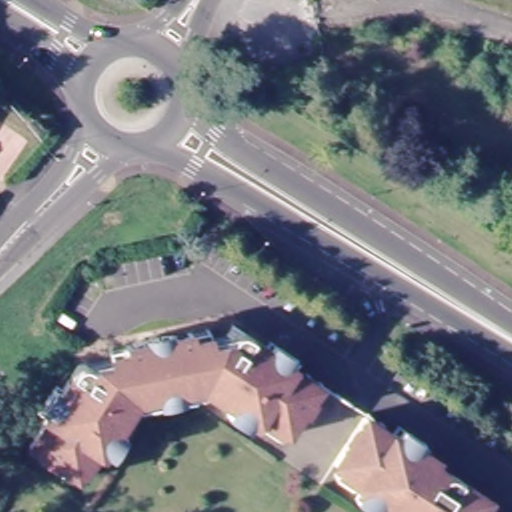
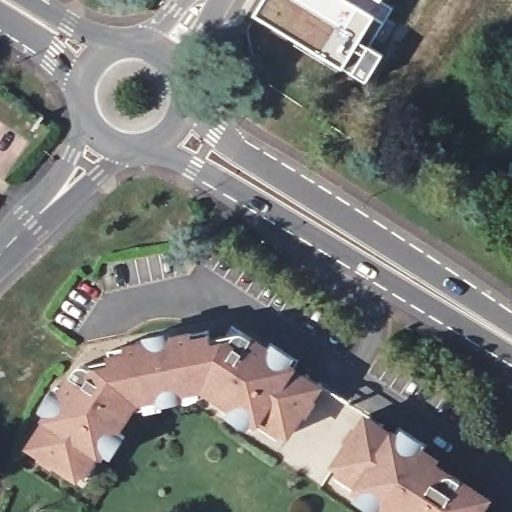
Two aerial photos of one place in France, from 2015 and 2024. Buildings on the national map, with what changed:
new [(262,0),(383,0),(393,7),(374,40),(366,34),(362,40),(384,53),(367,83),(311,52),(253,15),(262,0)]
unchanged [(104,455),(102,459),(95,454),(77,483),(28,451),(46,423),(37,417),(55,389),(61,392),(78,365),(90,373),(109,369),(108,359),(106,352),(123,349),(189,334),(206,330),(207,336),(209,344),(228,340),(229,341),(237,329),(265,347),(268,341),(297,360),(291,370),(318,387),(286,435),(280,431),(276,439),(254,424),(203,391),(198,387),(200,397),(173,403),(172,394),(164,396),(166,405),(139,412),(134,410),(116,438),(123,442),(111,459),(104,455)]
unchanged [(370,510),(349,496),(354,489),(350,487),(328,473),(333,465),(327,462),(360,414),(387,432),(393,424),(421,442),(417,448),(431,458),(429,461),(442,470),(482,497),(473,512),(388,512),(375,503),(370,510)]

